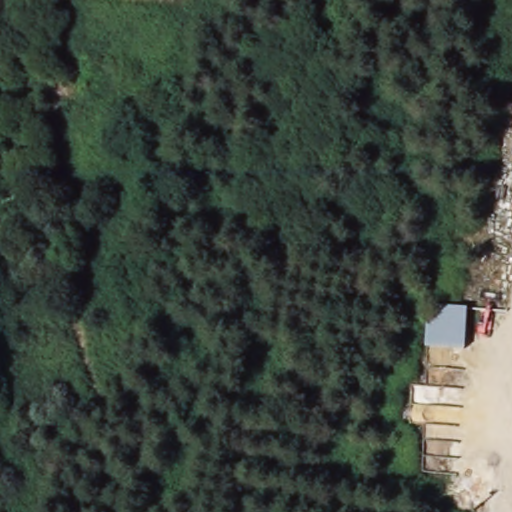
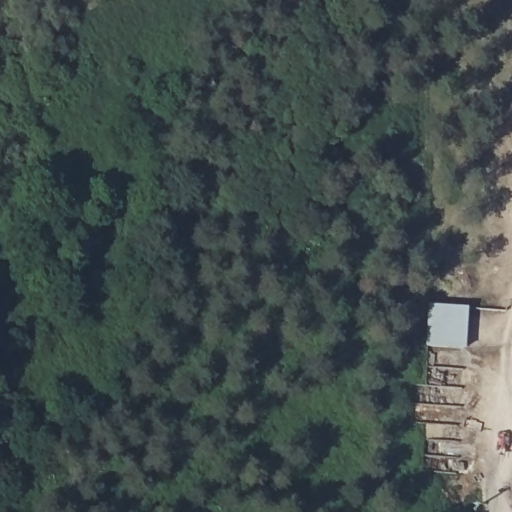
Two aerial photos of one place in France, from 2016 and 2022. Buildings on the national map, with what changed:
[]

